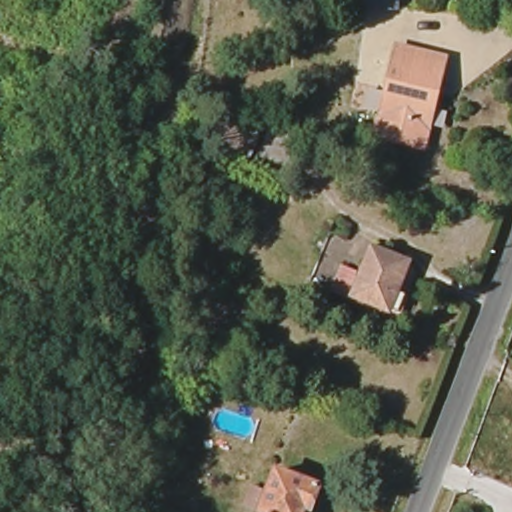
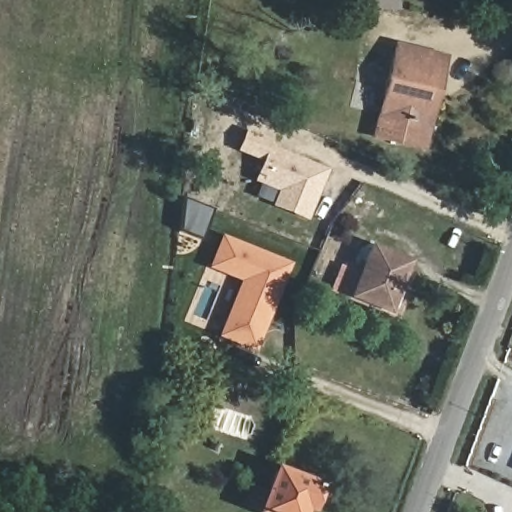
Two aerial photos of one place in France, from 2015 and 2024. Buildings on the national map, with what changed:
unchanged [(337,8),(337,0),(394,0),(394,9),(337,8)]
unchanged [(429,93),(440,96),(429,130),(378,116),(395,48),(439,60),(429,93)]
new [(307,221),(270,207),(275,192),(252,181),(261,161),(236,151),(245,128),(276,140),(274,146),(327,169),(307,221)]
demolished [(227,129),(262,140),(252,164),(225,153),(221,151),(221,149),(227,129)]
demolished [(290,181),(265,174),(271,151),(297,159),(290,181)]
new [(217,338),(239,282),(207,269),(220,234),(292,264),(286,276),(282,274),(278,285),(283,288),(255,353),(217,338)]
unchanged [(373,248),(412,265),(389,319),(351,301),(373,248)]
unchanged [(319,507),(299,504),(295,512),(273,512),(260,507),(276,468),(321,487),(319,507)]

